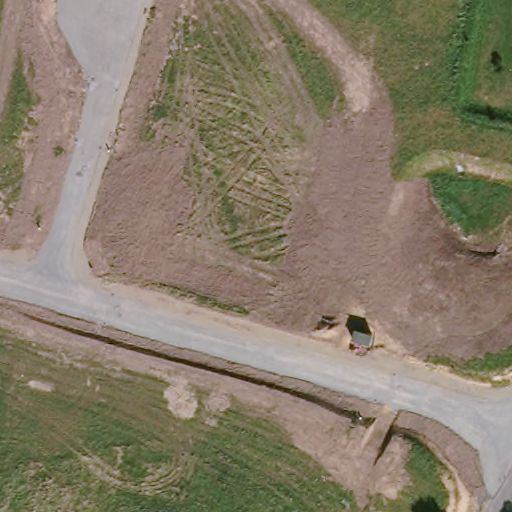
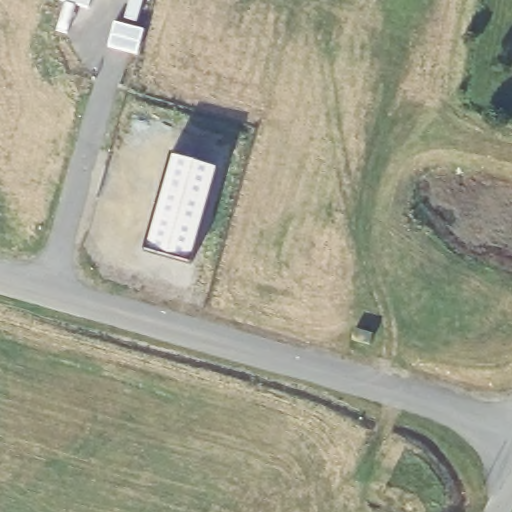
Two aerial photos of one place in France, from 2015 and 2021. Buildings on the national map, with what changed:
new [(216,170),(190,264),(145,250),(172,157),(216,170)]

